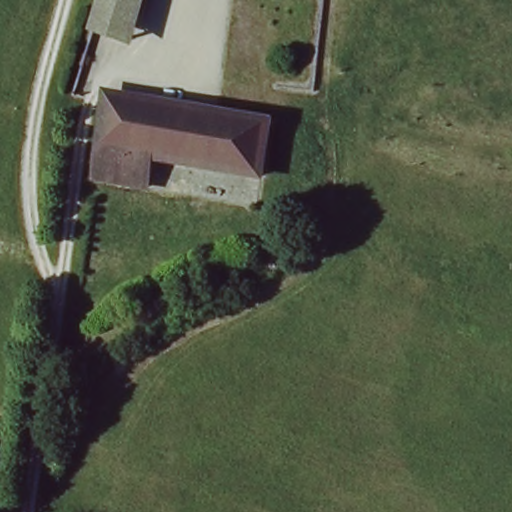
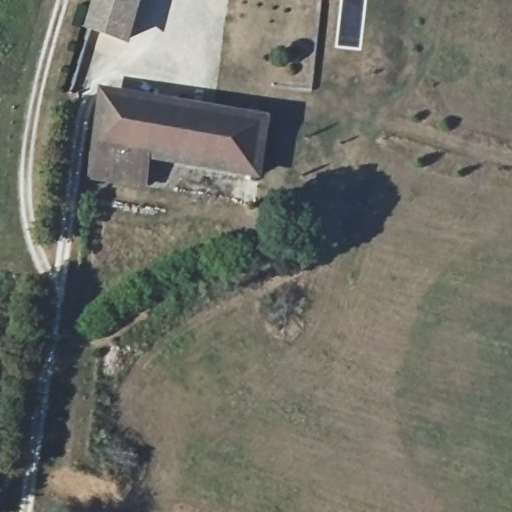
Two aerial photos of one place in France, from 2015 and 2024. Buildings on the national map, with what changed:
unchanged [(94,26),(99,10),(102,0),(141,0),(130,38),(94,26)]
unchanged [(274,80),(282,0),(325,0),(315,86),(274,80)]
unchanged [(260,176),(152,156),(147,186),(93,177),(105,98),(129,102),(137,99),(268,123),(260,176)]

